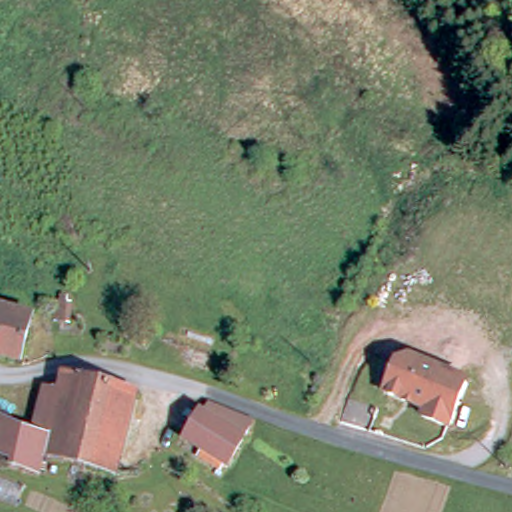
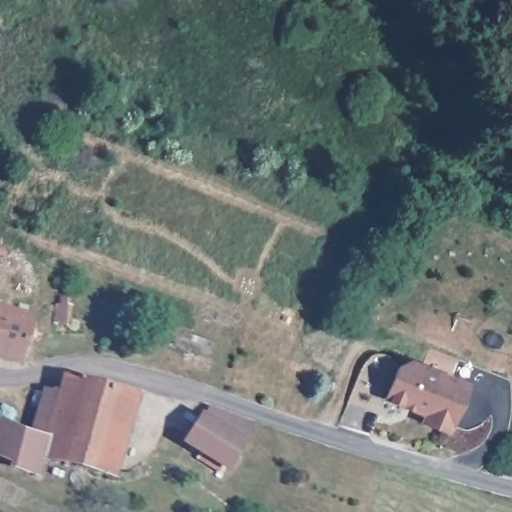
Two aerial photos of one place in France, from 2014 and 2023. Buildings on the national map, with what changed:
unchanged [(0,358),(0,309),(30,320),(15,358),(2,359),(0,358)]
unchanged [(427,417),(430,410),(420,405),(422,400),(412,396),(410,401),(390,392),(404,365),(416,359),(473,382),(452,427),(427,417)]
unchanged [(27,437),(42,391),(58,397),(65,372),(142,391),(118,477),(42,452),(45,443),(27,437)]
unchanged [(191,437),(200,412),(210,416),(212,408),(222,411),(218,417),(249,428),(239,455),(217,447),(191,437)]
unchanged [(10,469),(11,465),(0,458),(0,431),(20,437),(17,443),(42,452),(37,476),(10,469)]

